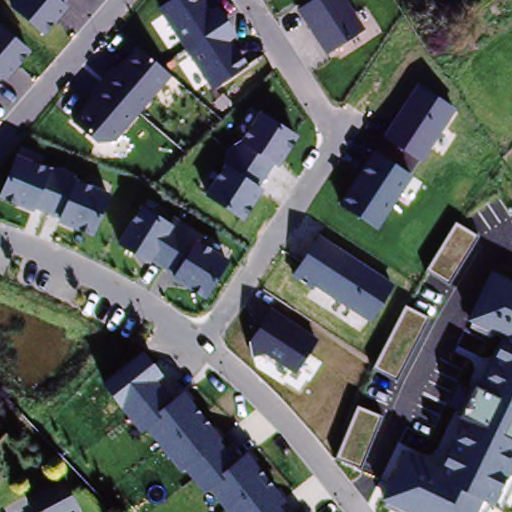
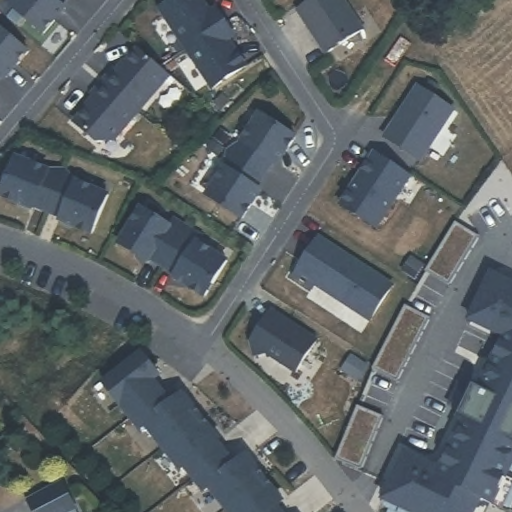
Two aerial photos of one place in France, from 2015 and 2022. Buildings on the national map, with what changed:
unchanged [(19,0),(72,0),(43,34),(11,9),(19,0)]
unchanged [(173,0),(204,0),(210,11),(219,7),(237,35),(230,40),(247,66),(210,89),(159,9),(173,0)]
unchanged [(363,30),(326,54),(299,10),(315,0),(343,0),(363,30)]
unchanged [(0,29),(24,50),(0,77),(0,29)]
unchanged [(136,46),(169,75),(114,140),(98,144),(71,119),(136,46)]
unchanged [(454,107),(421,161),(383,136),(415,86),(454,107)]
unchanged [(278,165),(273,163),(258,187),(264,191),(243,221),(204,196),(258,111),(298,138),(278,165)]
unchanged [(375,153),(411,178),(377,229),(339,200),(375,153)]
unchanged [(94,237),(0,202),(16,160),(108,195),(94,237)]
unchanged [(227,263),(206,298),(174,280),(176,276),(151,260),(149,263),(120,244),(140,210),(227,263)]
unchanged [(479,237),(449,285),(426,270),(454,221),(479,237)]
unchanged [(315,285),(312,290),(293,278),(318,239),(394,288),(372,323),(315,285)]
unchanged [(501,509),(489,504),(485,512),(406,512),(381,500),(404,450),(436,466),(499,336),(467,320),(492,271),(512,281),(512,485),(501,509)]
unchanged [(404,306),(427,318),(397,378),(373,367),(404,306)]
unchanged [(295,375),(265,353),(250,358),(249,340),(269,310),(317,340),(295,375)]
unchanged [(177,395),(183,390),(239,461),(250,453),(288,501),(282,506),(286,512),(226,512),(208,490),(203,492),(184,470),(182,472),(146,430),(140,433),(103,381),(143,351),(177,395)]
unchanged [(358,407),(382,416),(359,467),(335,457),(358,407)]
unchanged [(76,507),(74,508),(77,512),(33,512),(27,501),(63,482),(76,507)]

